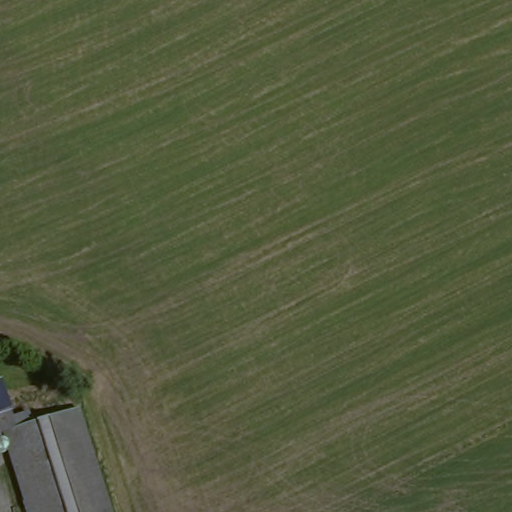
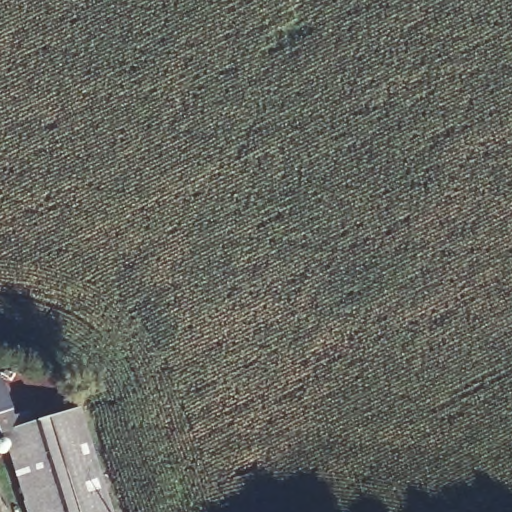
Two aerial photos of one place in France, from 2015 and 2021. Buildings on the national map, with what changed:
unchanged [(6,466),(0,469),(0,391),(19,429),(75,408),(107,512),(21,512),(6,466)]

